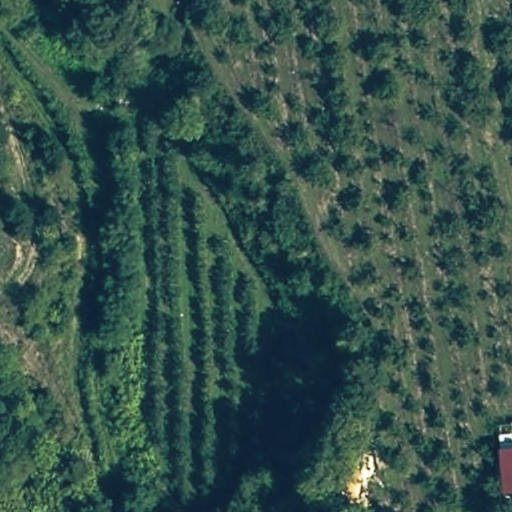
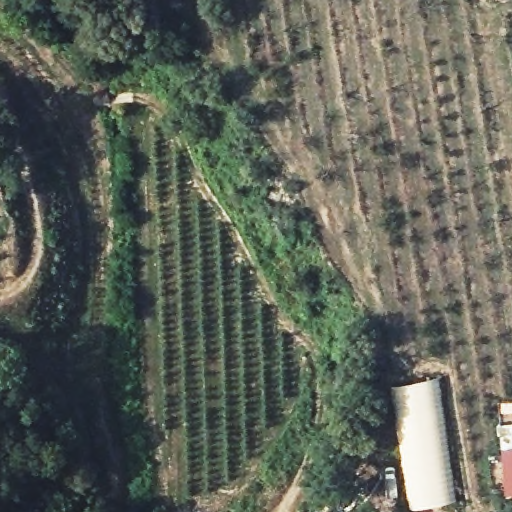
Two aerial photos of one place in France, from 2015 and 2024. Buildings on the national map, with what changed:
new [(457,503),(410,510),(392,387),(438,378),(457,503)]
unchanged [(512,448),(512,496),(505,497),(501,449),(512,448)]

